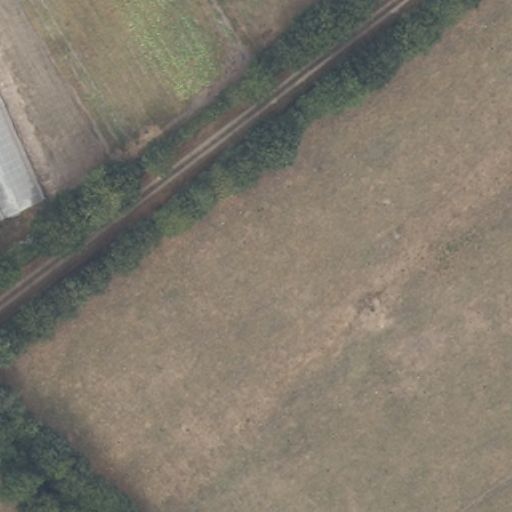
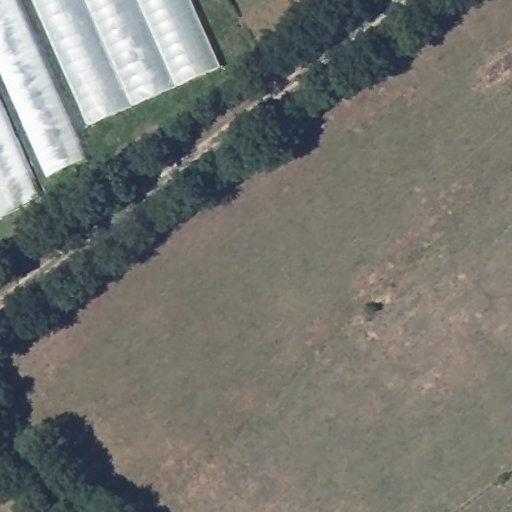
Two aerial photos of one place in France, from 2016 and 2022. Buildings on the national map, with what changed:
new [(92,159),(39,180),(47,199),(0,220),(0,0),(23,0),(92,159)]
new [(90,126),(35,0),(193,0),(223,68),(90,126)]

